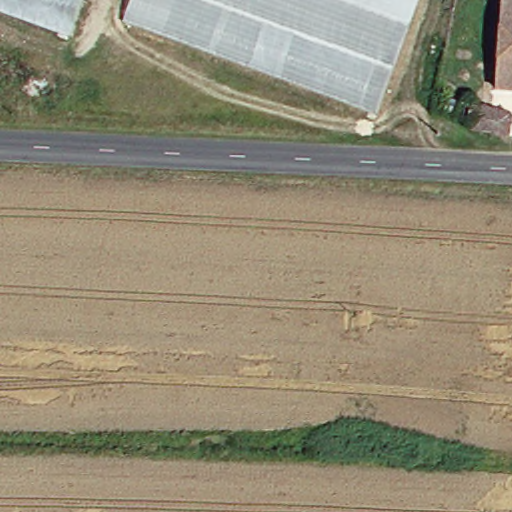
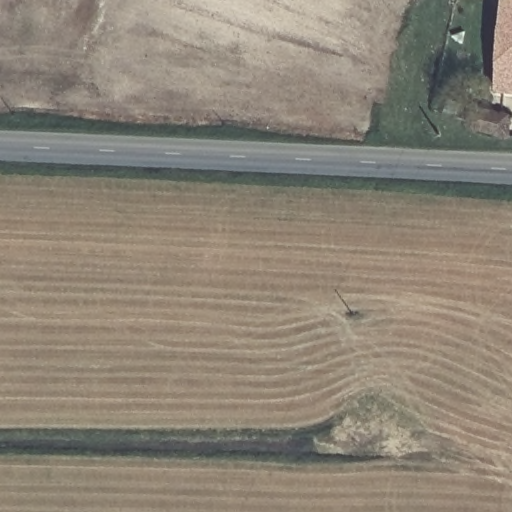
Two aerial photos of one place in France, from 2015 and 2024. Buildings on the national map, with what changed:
demolished [(0,9),(0,0),(75,0),(63,32),(0,9)]
demolished [(114,20),(122,0),(409,0),(370,111),(114,20)]
unchanged [(495,0),(512,0),(512,92),(487,90),(495,0)]
unchanged [(495,141),(461,131),(464,124),(451,119),(456,106),(505,120),(509,134),(495,141)]

